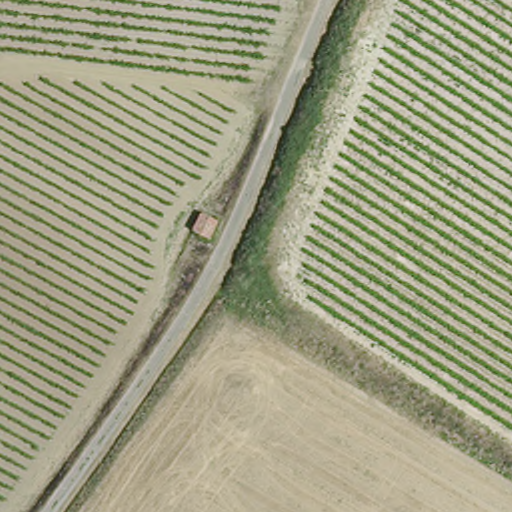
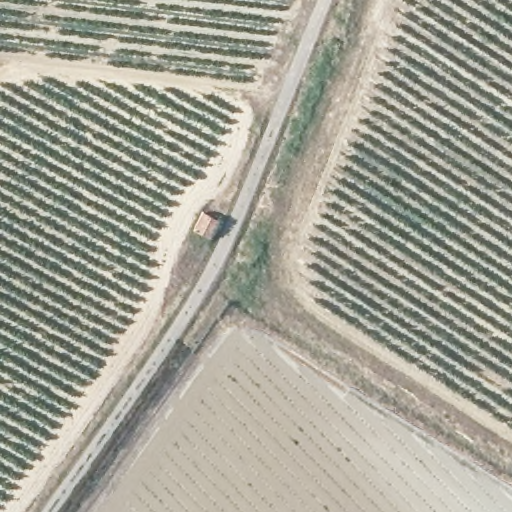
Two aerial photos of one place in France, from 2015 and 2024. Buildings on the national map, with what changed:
unchanged [(189,228),(200,208),(223,219),(211,241),(189,228)]

